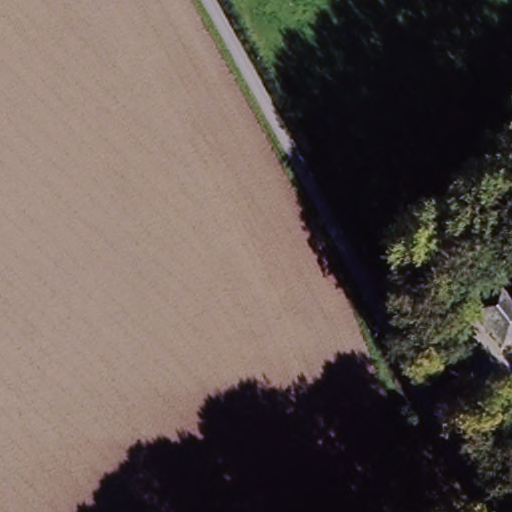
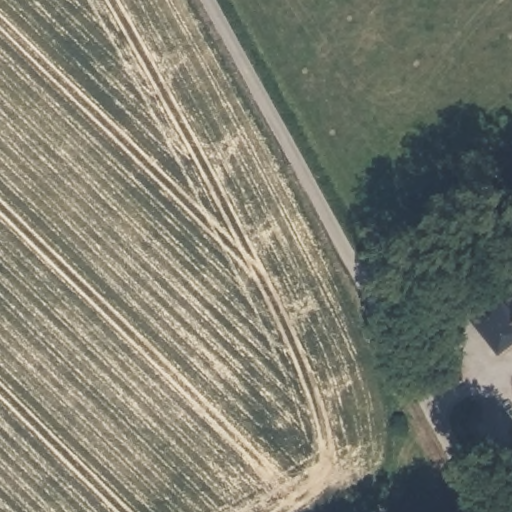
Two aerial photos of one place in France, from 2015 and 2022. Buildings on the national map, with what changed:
unchanged [(499,366),(463,321),(487,302),(491,307),(512,290),(512,355),(499,366)]

